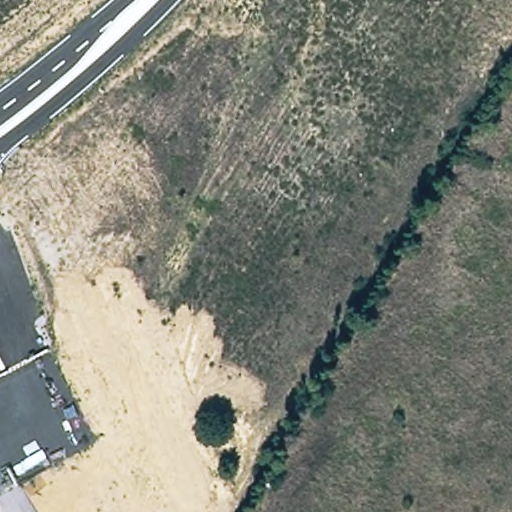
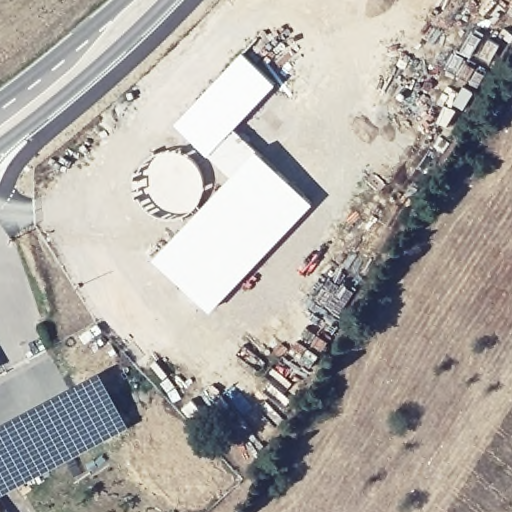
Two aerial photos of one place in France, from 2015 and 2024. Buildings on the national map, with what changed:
new [(241,52),(276,84),(236,127),(208,155),(173,122),(241,52)]
new [(211,192),(229,176),(208,155),(236,127),(314,203),(210,311),(153,257),(211,192)]
new [(0,509),(2,512),(0,512),(0,509)]

